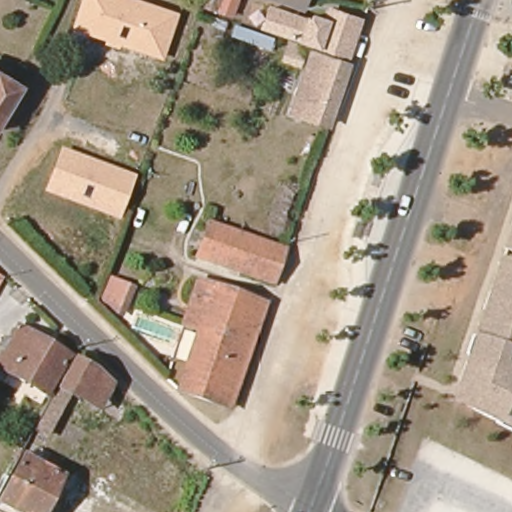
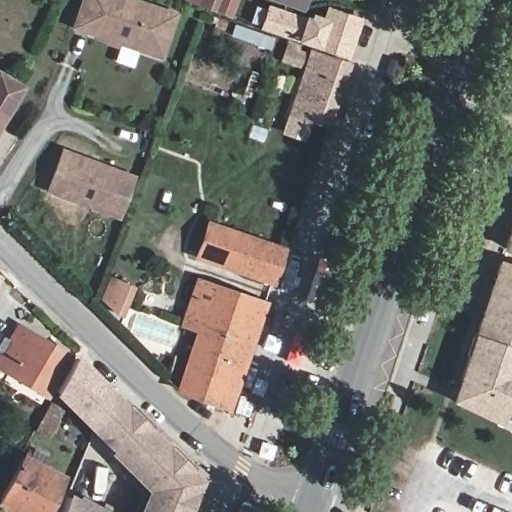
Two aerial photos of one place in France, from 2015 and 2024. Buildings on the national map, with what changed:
unchanged [(103,44),(104,39),(71,28),(80,0),(142,0),(179,12),(162,59),(120,45),(119,49),(103,44)]
unchanged [(218,9),(221,0),(236,0),(230,14),(218,9)]
unchanged [(279,0),(304,0),(301,9),(279,0)]
unchanged [(314,14),(324,19),(328,9),(359,20),(346,54),(300,37),(264,24),(271,5),(306,19),(312,20),(314,14)]
unchanged [(306,66),(313,45),(350,60),(329,123),(306,114),(292,109),(306,66)]
unchanged [(0,76),(23,89),(0,124),(0,76)]
unchanged [(119,220),(44,192),(61,148),(135,175),(119,220)]
unchanged [(197,258),(209,225),(286,249),(274,285),(197,258)]
unchanged [(507,248),(512,232),(512,249),(507,248)]
unchanged [(474,334),(498,262),(512,267),(512,347),(474,334)]
unchanged [(137,289),(122,320),(101,300),(112,279),(137,289)]
unchanged [(204,304),(191,299),(198,283),(252,302),(214,407),(174,395),(204,304)]
unchanged [(214,407),(252,302),(262,306),(240,367),(225,409),(214,407)]
unchanged [(47,395),(0,369),(0,362),(18,329),(68,358),(47,395)]
unchanged [(510,429),(473,409),(460,379),(464,367),(474,334),(512,347),(512,424),(510,429)]
unchanged [(50,433),(39,427),(74,362),(94,374),(108,386),(95,411),(78,404),(68,399),(50,433)]
demolished [(116,419),(103,414),(95,411),(108,386),(114,390),(124,399),(116,419)]
new [(135,412),(141,407),(211,479),(196,512),(136,512),(145,490),(94,432),(113,389),(135,412)]
unchanged [(40,512),(14,512),(0,504),(0,492),(19,457),(24,461),(30,449),(39,456),(34,467),(56,478),(43,507),(40,512)]
new [(69,492),(110,512),(60,512),(69,492)]

